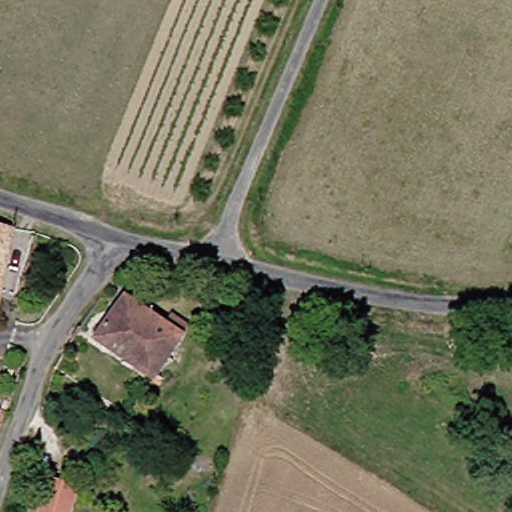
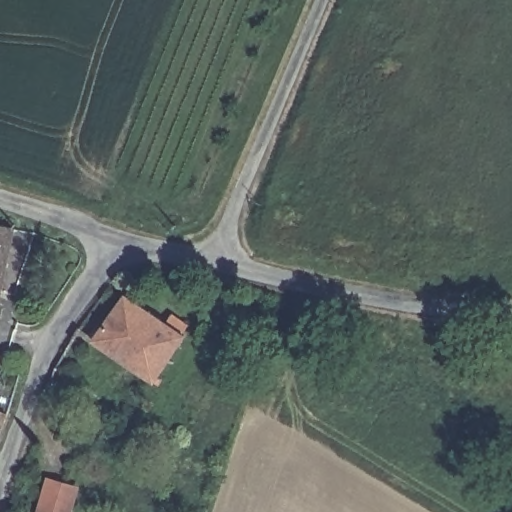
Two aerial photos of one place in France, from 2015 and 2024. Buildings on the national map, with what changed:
unchanged [(0,260),(0,237),(5,239),(0,260)]
unchanged [(145,382),(85,344),(117,298),(161,327),(168,319),(180,331),(145,382)]
unchanged [(32,512),(40,484),(61,488),(71,490),(65,512),(32,512)]

